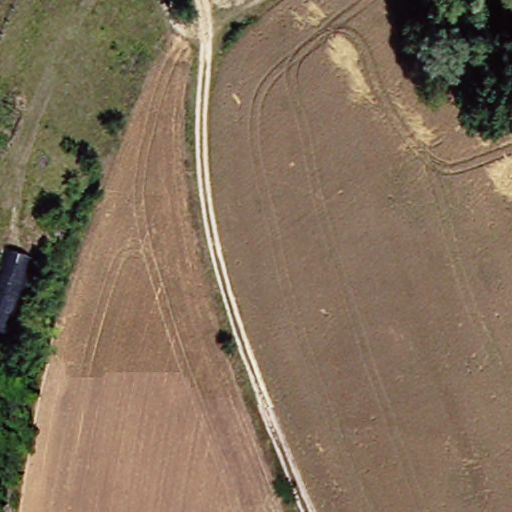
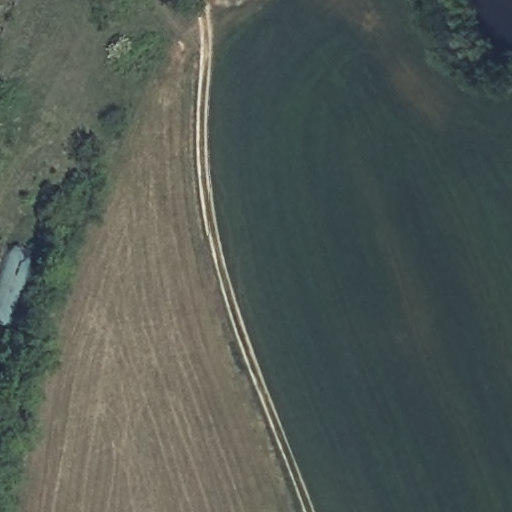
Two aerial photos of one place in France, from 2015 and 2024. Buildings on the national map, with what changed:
unchanged [(8,332),(0,329),(0,288),(20,294),(8,332)]

